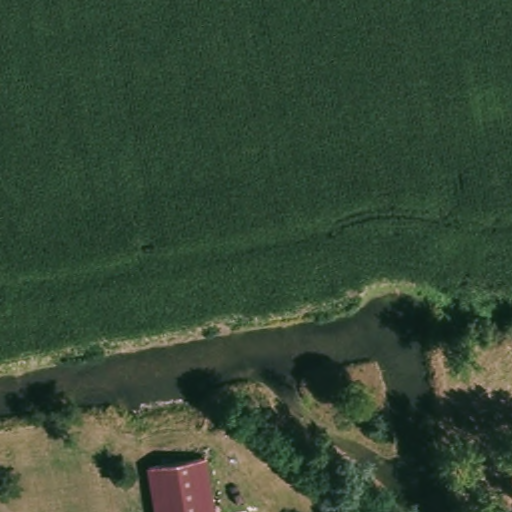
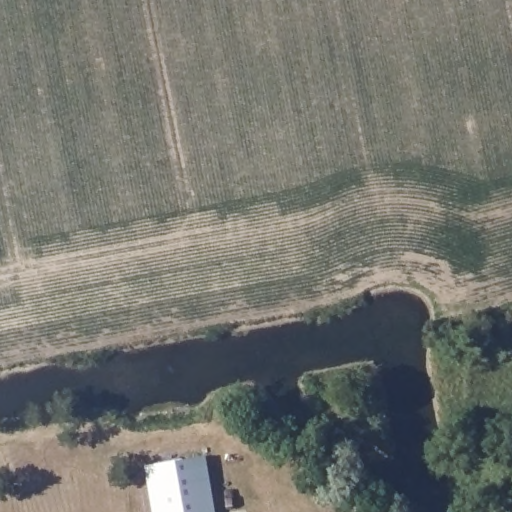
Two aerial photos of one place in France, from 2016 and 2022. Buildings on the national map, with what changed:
unchanged [(146,475),(203,465),(211,512),(152,512),(146,475)]

